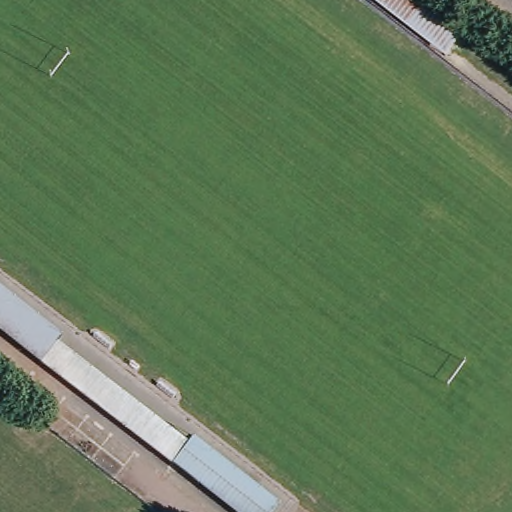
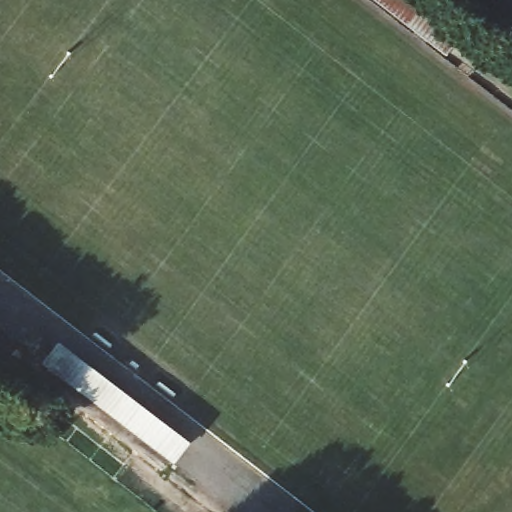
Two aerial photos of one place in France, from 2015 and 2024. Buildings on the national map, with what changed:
unchanged [(464,37),(449,56),(375,0),(416,0),(464,37)]
unchanged [(67,333),(64,338),(194,439),(197,434),(286,502),(277,512),(237,512),(0,328),(0,281),(67,333)]

